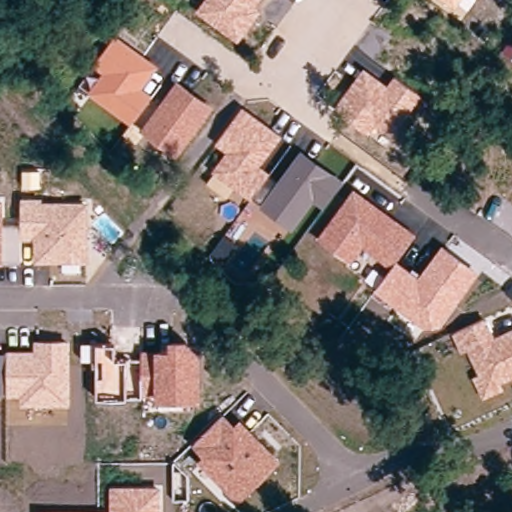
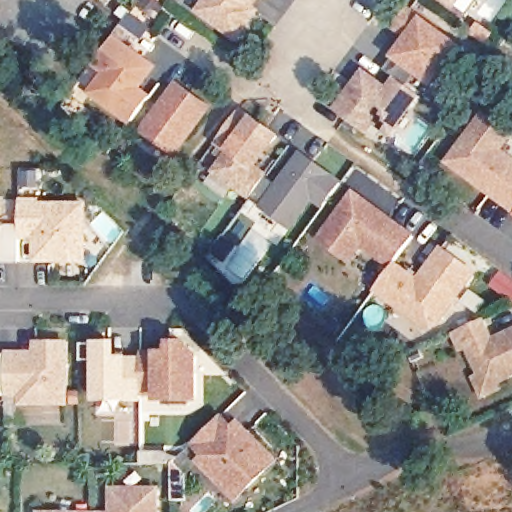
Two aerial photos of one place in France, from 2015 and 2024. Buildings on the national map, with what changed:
new [(100,4),(99,5),(92,0),(102,0),(100,4)]
unchanged [(257,5),(263,10),(238,42),(196,12),(204,0),(260,0),(257,5)]
unchanged [(455,10),(441,0),(462,0),(455,10)]
new [(433,87),(417,76),(412,84),(387,67),(392,59),(408,37),(390,24),(404,4),(464,47),(433,87)]
unchanged [(214,106),(177,157),(144,134),(136,143),(124,134),(129,125),(88,92),(103,75),(93,66),(116,35),(160,66),(144,89),(153,95),(134,123),(141,128),(177,81),(214,106)]
unchanged [(388,85),(395,76),(424,96),(395,139),(376,126),(369,136),(333,111),(364,68),(388,85)]
unchanged [(346,182),(325,210),(315,202),(294,231),(260,207),(262,204),(253,197),(251,201),(235,188),(226,199),(207,184),(214,176),(211,172),(226,154),(215,145),(243,107),(283,136),(261,166),(271,174),(269,176),(277,182),(301,151),(346,182)]
new [(505,207),(497,201),(452,168),(486,121),(512,140),(512,142),(502,156),(512,163),(512,212),(505,207)]
unchanged [(479,272),(441,327),(424,330),(375,292),(392,268),(364,247),(351,263),(317,238),(354,188),(416,235),(397,261),(419,278),(442,247),(479,272)]
unchanged [(3,225),(23,225),(21,198),(42,197),(43,201),(88,202),(89,263),(35,263),(34,241),(20,241),(21,264),(0,264),(0,197),(3,197),(3,225)]
unchanged [(502,383),(505,390),(483,400),(473,377),(478,375),(469,350),(461,354),(453,334),(486,318),(495,337),(512,329),(512,378),(502,383)]
unchanged [(201,355),(202,402),(156,402),(156,395),(144,394),(144,398),(128,397),(128,399),(98,400),(97,360),(83,361),(82,344),(116,343),(116,361),(128,361),(127,360),(142,360),(143,351),(170,350),(170,341),(188,340),(201,355)]
unchanged [(20,406),(20,396),(0,396),(0,351),(35,350),(34,341),(70,341),(71,406),(20,406)]
unchanged [(236,425),(241,420),(281,458),(241,502),(199,461),(203,457),(193,445),(224,414),(236,425)]
unchanged [(181,468),(194,482),(194,507),(179,508),(179,470),(181,468)]
unchanged [(110,487),(161,487),(161,512),(38,512),(38,510),(110,512),(110,487)]

